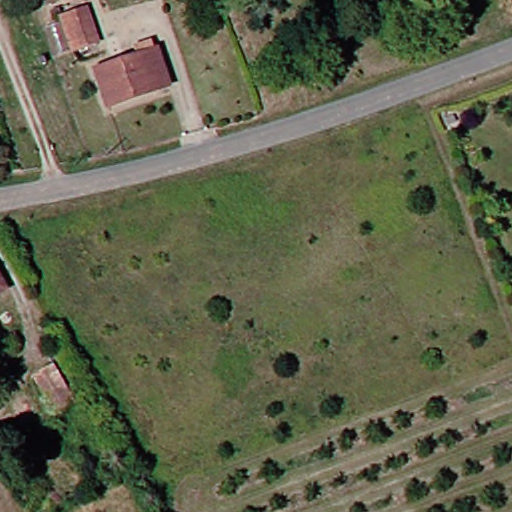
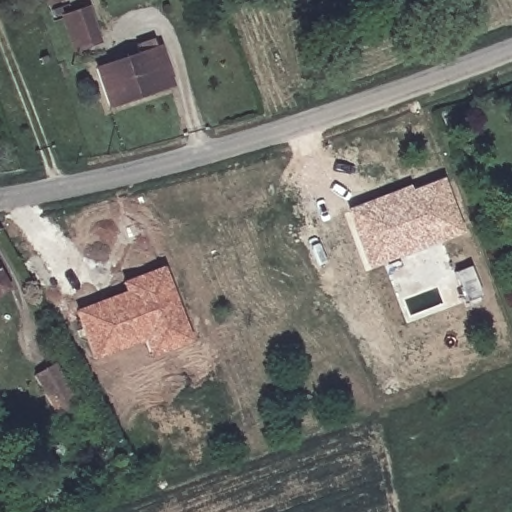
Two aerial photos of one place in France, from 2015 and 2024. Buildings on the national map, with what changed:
unchanged [(51,9),(49,0),(79,0),(51,9)]
unchanged [(101,19),(109,46),(81,56),(68,17),(95,7),(97,10),(101,19)]
unchanged [(143,58),(141,50),(157,44),(161,53),(171,51),(182,88),(115,110),(105,72),(143,58)]
new [(345,208),(408,185),(411,190),(442,178),(463,232),(367,268),(345,208)]
new [(72,311),(124,291),(120,281),(162,265),(192,342),(151,357),(144,339),(91,359),(72,311)]
unchanged [(0,299),(0,277),(9,294),(0,299)]
unchanged [(78,402),(61,412),(39,374),(55,363),(78,402)]

